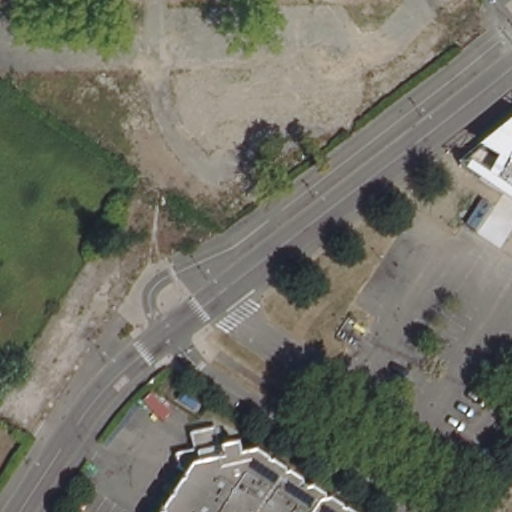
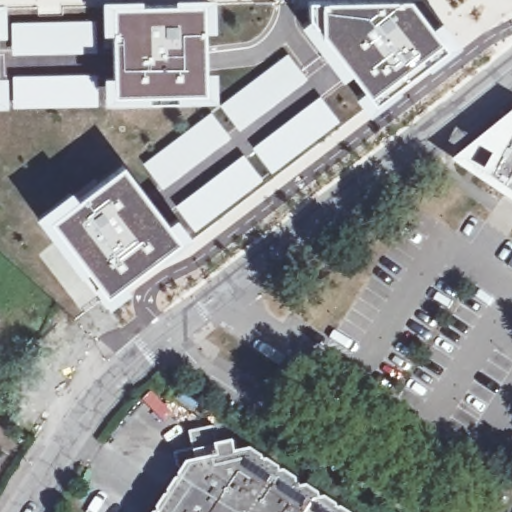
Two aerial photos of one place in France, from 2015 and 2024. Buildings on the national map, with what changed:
new [(142,1),(174,1),(174,0),(213,0),(213,22),(211,22),(211,30),(208,30),(211,74),(209,101),(171,105),(100,105),(100,72),(108,72),(109,34),(100,34),(100,0),(142,0),(142,1)]
new [(300,0),(424,0),(454,40),(366,107),(303,25),(300,0)]
new [(3,18),(0,18),(0,1),(4,1),(3,18)]
new [(93,19),(94,50),(68,54),(9,55),(8,20),(93,19)]
new [(287,51),(308,78),(238,131),(218,105),(287,51)]
demolished [(259,113),(259,66),(353,64),(353,111),(259,113)]
new [(100,72),(100,105),(100,106),(11,109),(10,75),(100,72)]
new [(211,110),(231,137),(161,190),(141,162),(211,110)]
unchanged [(488,189),(512,145),(512,201),(488,189)]
new [(243,152),(265,181),(193,236),(173,205),(243,152)]
new [(35,220),(123,154),(128,162),(131,160),(191,240),(103,310),(35,220)]
unchanged [(168,496),(172,496),(171,490),(180,479),(183,480),(181,475),(186,470),(178,466),(176,452),(194,447),(191,430),(213,426),(218,445),(234,442),(238,452),(243,451),(253,450),(264,457),(264,461),(269,460),(281,467),(281,472),(286,471),(297,478),(299,477),(299,485),(302,485),(303,487),(309,487),(321,495),(321,502),(336,511),(344,508),(349,512),(161,512),(161,508),(168,496)]

